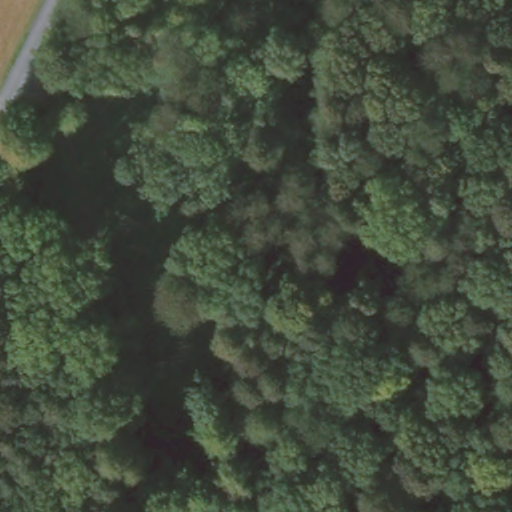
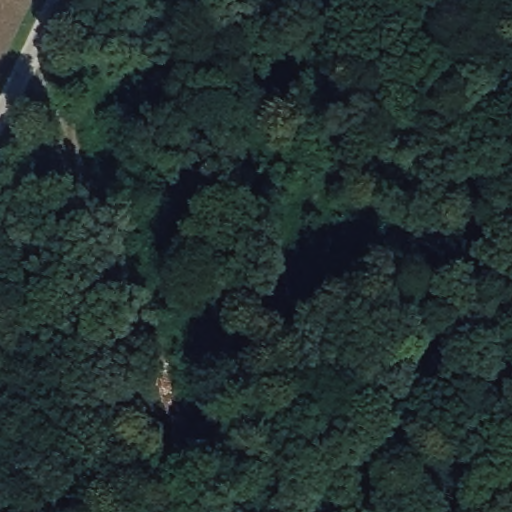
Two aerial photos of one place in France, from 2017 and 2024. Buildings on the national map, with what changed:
unchanged [(14,245),(0,205),(0,203),(16,197),(31,239),(14,245)]

